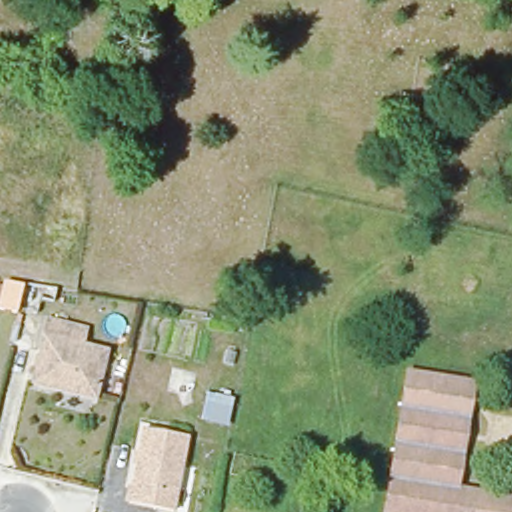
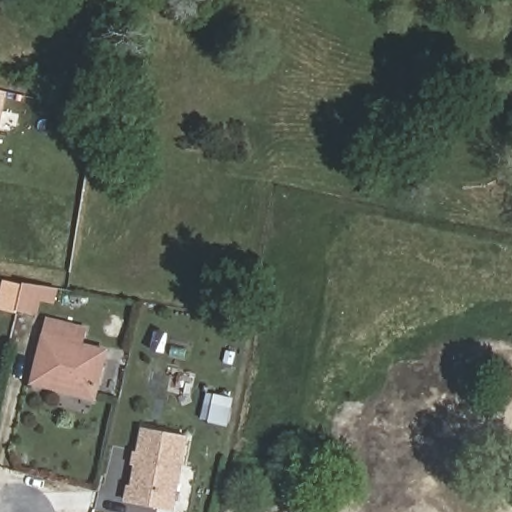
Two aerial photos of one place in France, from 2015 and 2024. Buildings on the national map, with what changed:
new [(6,91),(0,123),(0,90),(6,91)]
unchanged [(20,298),(16,312),(0,308),(0,306),(6,280),(23,284),(20,298)]
unchanged [(35,368),(44,332),(80,340),(105,347),(94,392),(59,383),(33,378),(35,368)]
demolished [(403,406),(408,371),(474,382),(457,488),(512,497),(512,512),(385,512),(390,482),(403,406)]
unchanged [(210,400),(226,401),(223,420),(208,419),(210,400)]
unchanged [(129,503),(143,428),(186,436),(181,466),(172,511),(129,503)]

